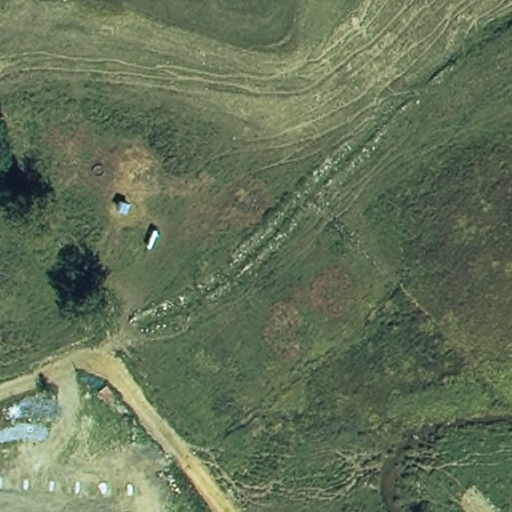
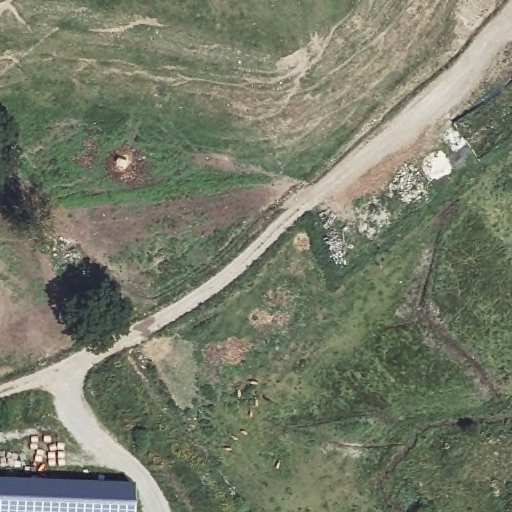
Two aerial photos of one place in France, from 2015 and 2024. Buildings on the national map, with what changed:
new [(131,512),(0,512),(0,482),(132,488),(131,512)]

